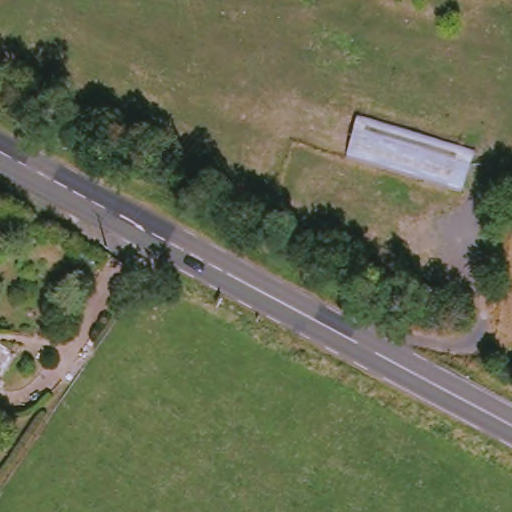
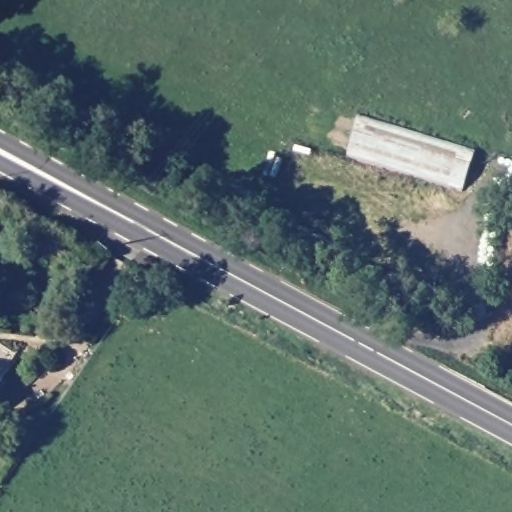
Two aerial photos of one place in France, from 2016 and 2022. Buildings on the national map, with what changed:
unchanged [(476,150),(468,187),(320,143),(330,111),(476,150)]
unchanged [(0,384),(0,365),(9,371),(0,384)]

